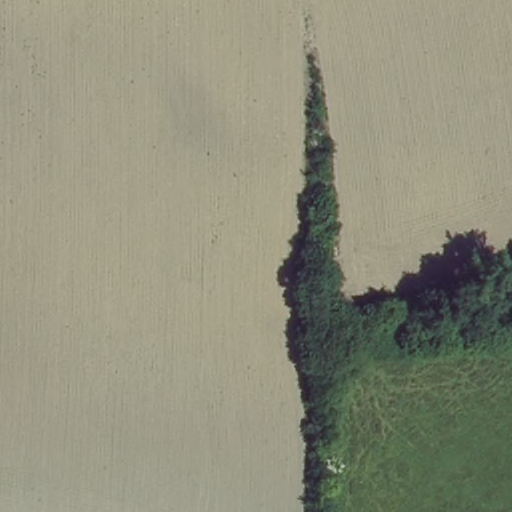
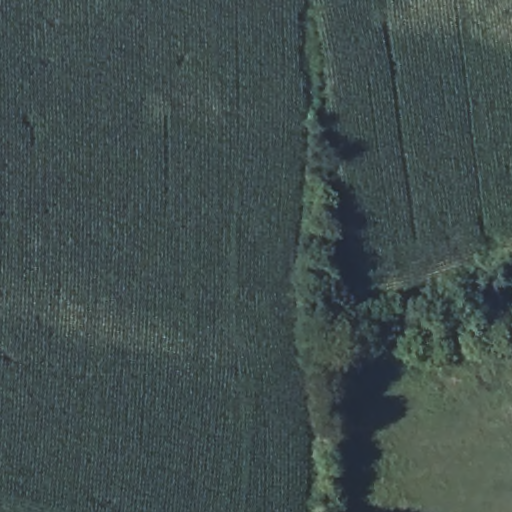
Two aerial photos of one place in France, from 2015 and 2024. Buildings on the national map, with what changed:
[]

